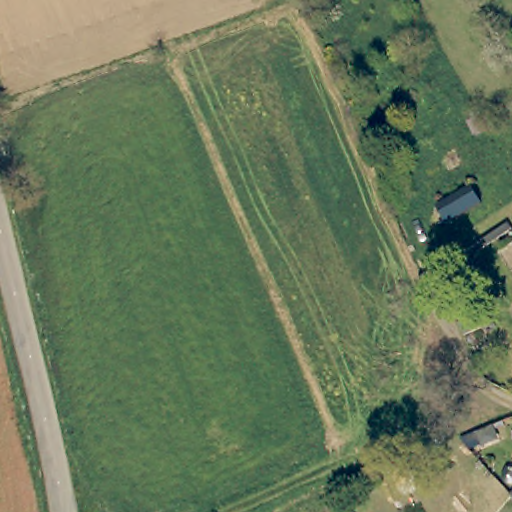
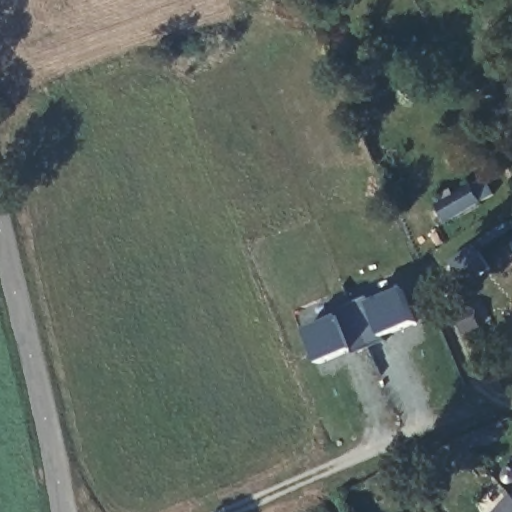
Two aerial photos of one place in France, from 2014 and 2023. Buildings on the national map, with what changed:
new [(305,329),(339,315),(335,310),(371,296),(377,299),(402,289),(417,323),(388,335),(387,341),(355,355),(354,350),(321,362),(305,329)]
unchanged [(481,325),(463,331),(454,310),(472,302),(481,325)]
unchanged [(496,471),(498,468),(502,466),(506,465),(510,466),(512,468),(512,484),(508,486),(504,486),(500,485),(496,480),(495,475),(496,471)]

